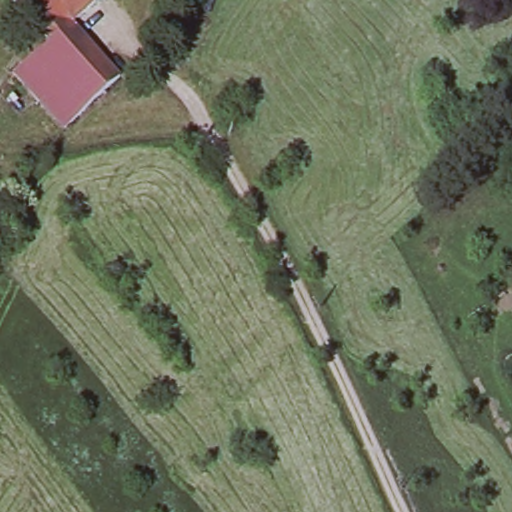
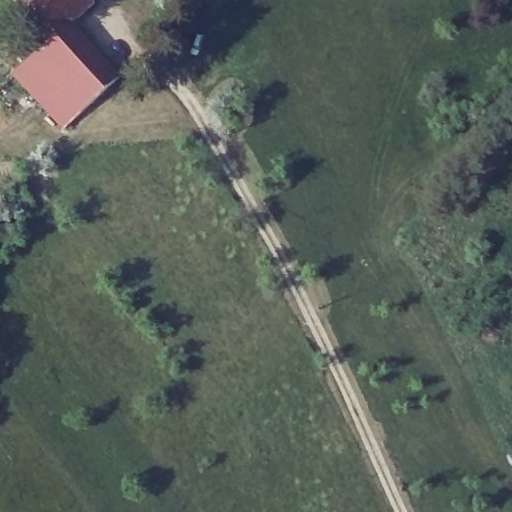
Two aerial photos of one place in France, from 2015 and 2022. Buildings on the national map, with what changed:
unchanged [(90,2),(67,24),(47,42),(43,38),(8,0),(88,0),(90,2)]
unchanged [(47,42),(67,24),(113,76),(91,105),(88,107),(37,52),(47,42)]
unchanged [(37,52),(88,107),(62,132),(12,76),(37,52)]

